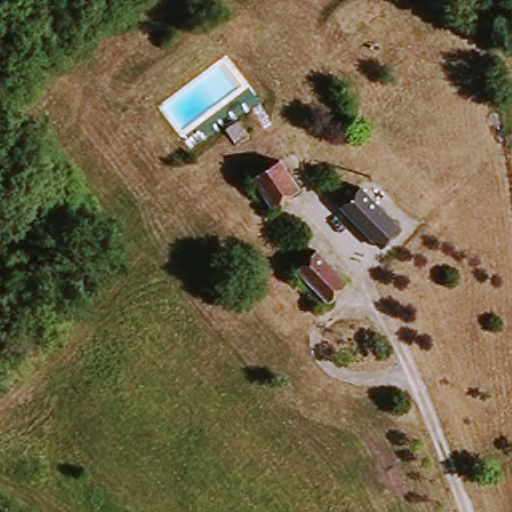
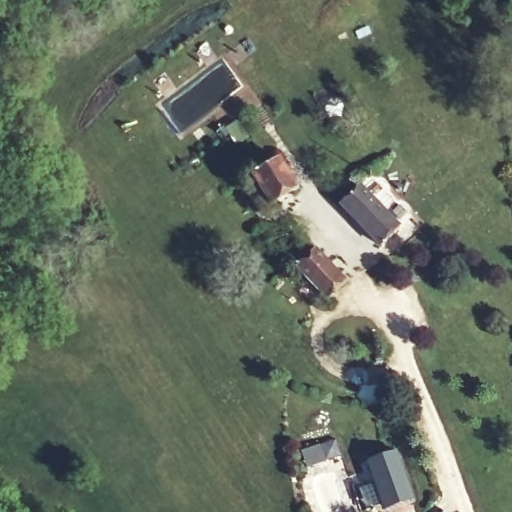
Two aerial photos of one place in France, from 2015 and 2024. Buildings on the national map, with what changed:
unchanged [(279,207),(258,179),(279,164),(299,191),(279,207)]
unchanged [(378,245),(344,205),(361,190),(395,229),(378,245)]
unchanged [(296,259),(309,247),(349,293),(330,310),(306,284),(313,278),(296,259)]
new [(414,501),(386,512),(368,463),(397,451),(414,501)]

